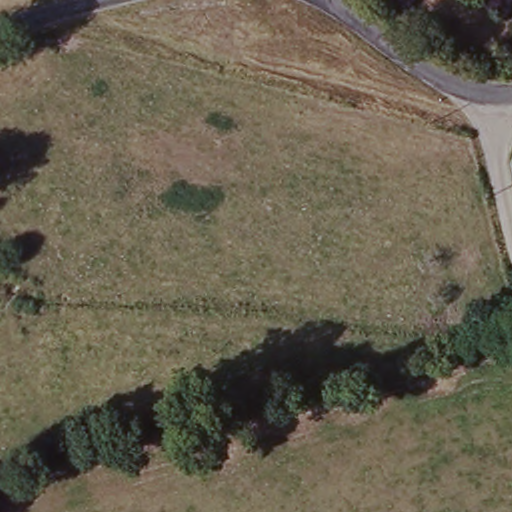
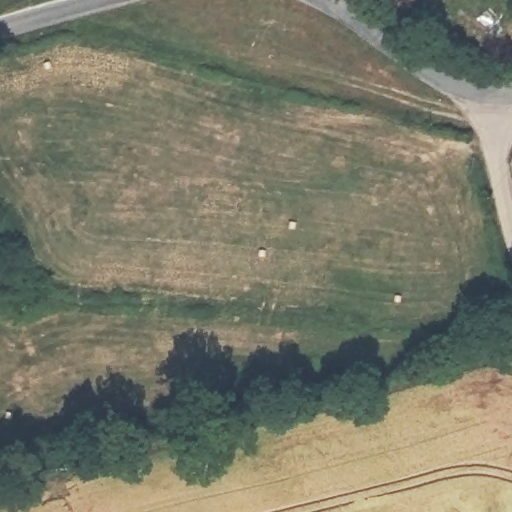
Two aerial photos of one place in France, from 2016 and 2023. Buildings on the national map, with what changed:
unchanged [(512,64),(503,57),(512,48),(512,64)]

